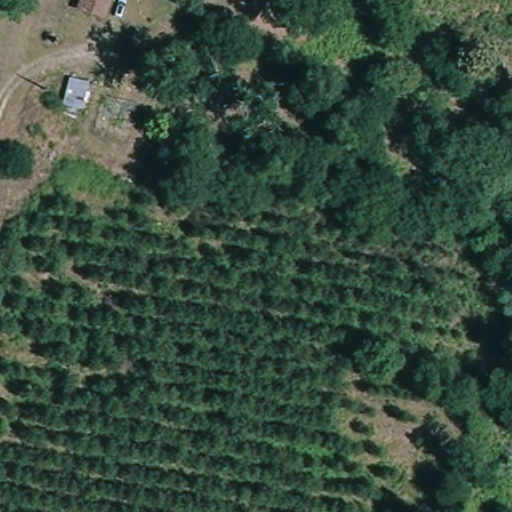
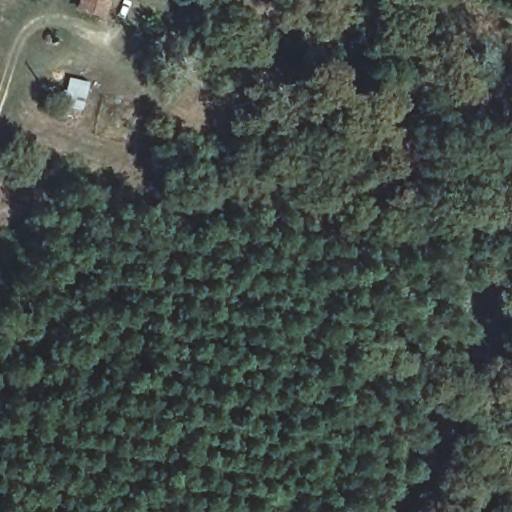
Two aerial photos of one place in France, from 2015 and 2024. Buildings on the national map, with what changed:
unchanged [(103,20),(78,12),(81,0),(110,0),(103,20)]

